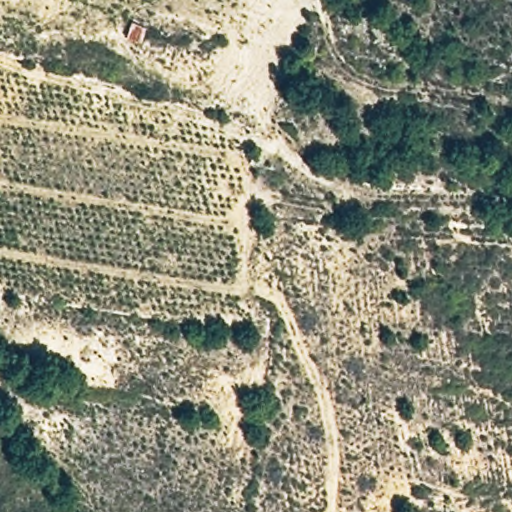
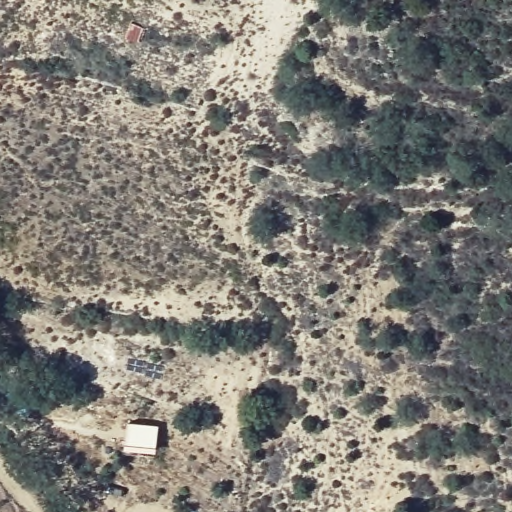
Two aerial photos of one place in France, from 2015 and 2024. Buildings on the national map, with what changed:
unchanged [(129,17),(148,24),(143,44),(125,36),(129,17)]

